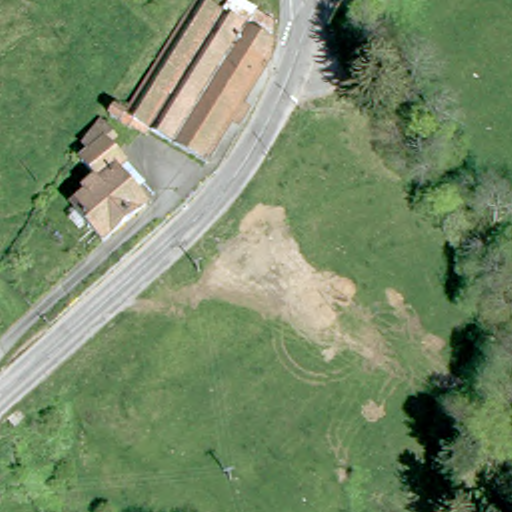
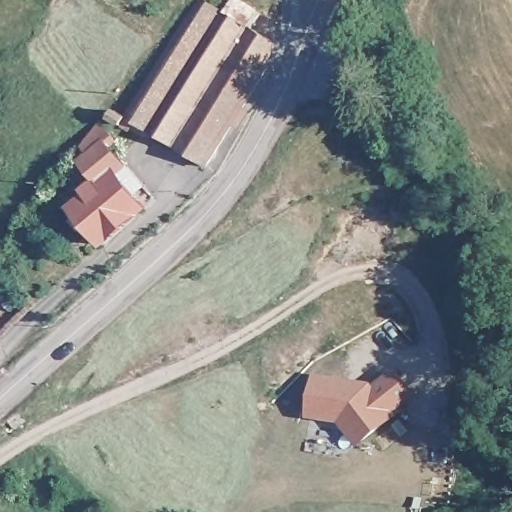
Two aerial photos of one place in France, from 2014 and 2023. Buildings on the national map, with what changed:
unchanged [(203,3),(228,17),(238,2),(279,28),(270,41),(281,49),(275,68),(212,173),(153,135),(150,140),(137,133),(134,138),(116,126),(122,118),(129,122),(203,3)]
unchanged [(140,199),(152,213),(110,251),(80,215),(105,193),(87,172),(103,157),(92,146),(105,127),(119,142),(112,147),(150,190),(140,199)]
new [(419,394),(395,412),(398,415),(358,446),(340,422),(306,417),(313,373),(371,381),(375,385),(396,366),(419,394)]

